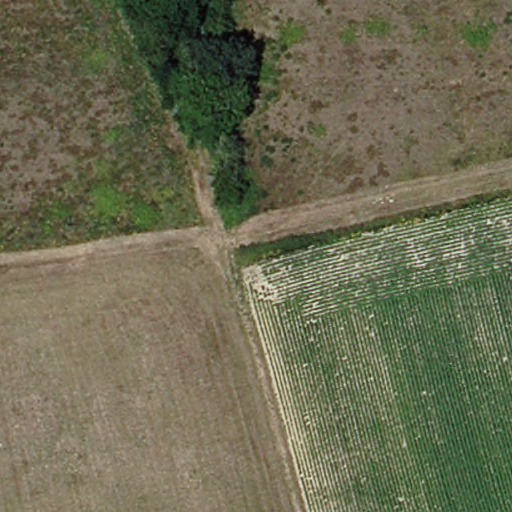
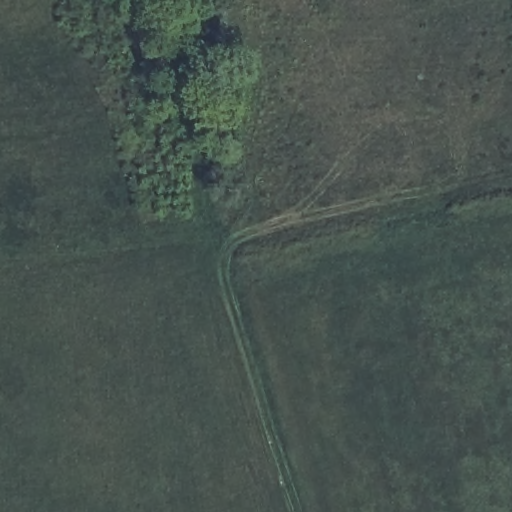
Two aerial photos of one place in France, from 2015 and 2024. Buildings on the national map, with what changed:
[]

